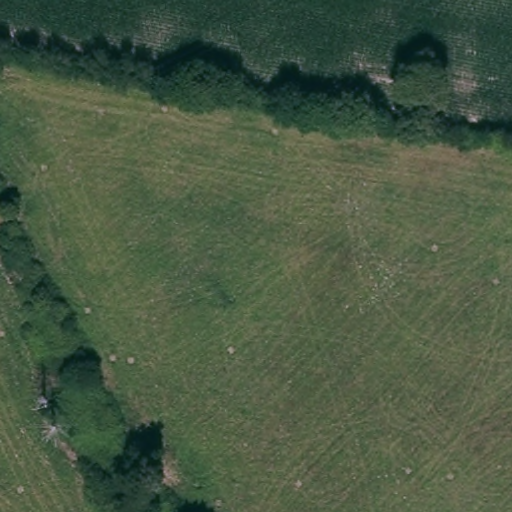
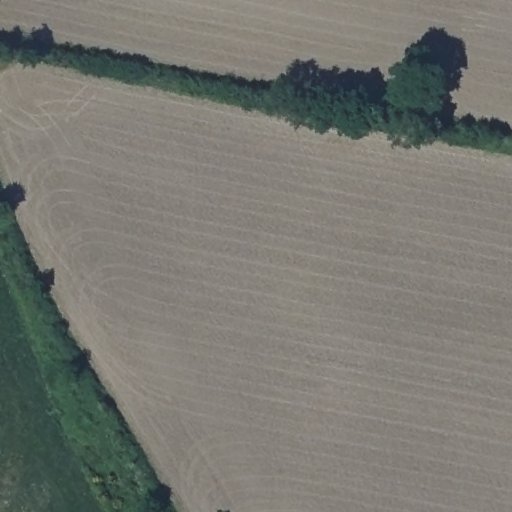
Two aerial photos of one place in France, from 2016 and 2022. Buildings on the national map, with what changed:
[]

